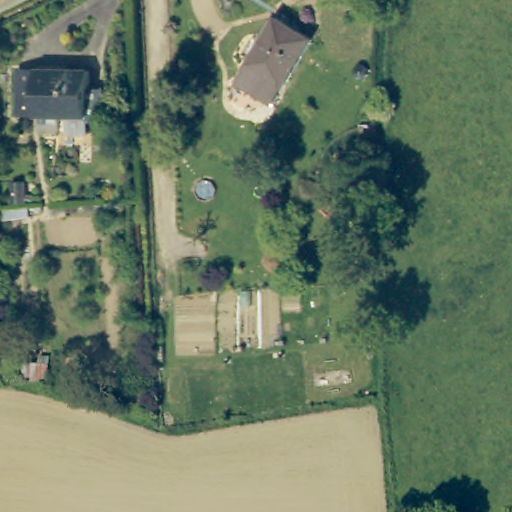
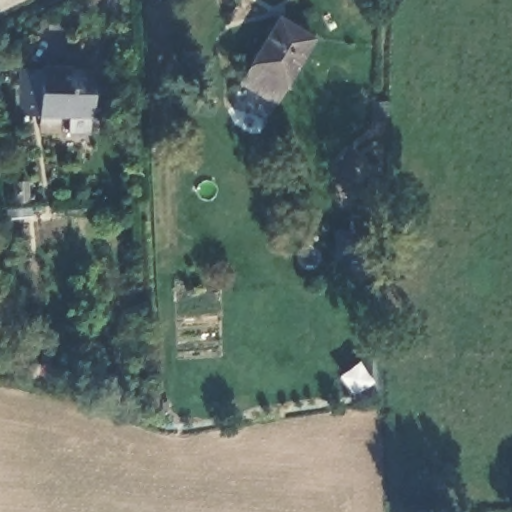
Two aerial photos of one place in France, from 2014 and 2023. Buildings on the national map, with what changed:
unchanged [(279,18),(312,38),(273,103),(241,83),(279,18)]
unchanged [(87,78),(102,78),(103,112),(88,112),(89,125),(67,125),(67,107),(58,107),(58,116),(39,116),(39,111),(39,108),(17,109),(17,62),(87,61),(87,78)]

